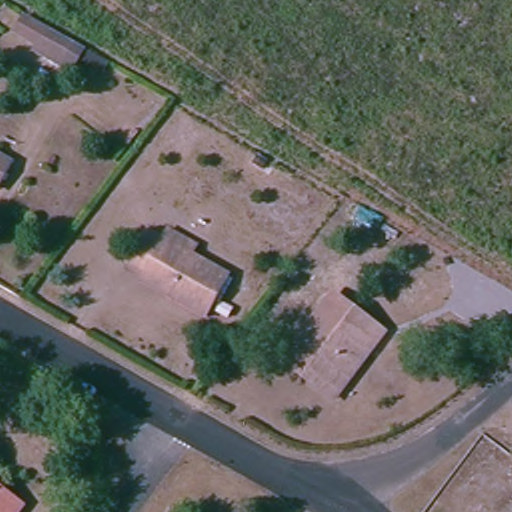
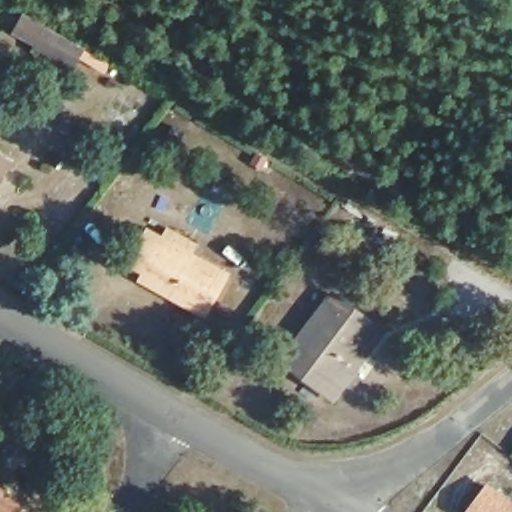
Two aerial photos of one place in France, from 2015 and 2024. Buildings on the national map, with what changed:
unchanged [(75,41),(62,66),(41,54),(45,50),(22,36),(33,18),(75,41)]
unchanged [(16,159),(0,192),(0,150),(16,159)]
unchanged [(147,274),(132,266),(150,232),(165,239),(169,230),(201,247),(195,257),(236,280),(212,321),(172,301),(142,283),(147,274)]
unchanged [(336,386),(295,356),(337,297),(389,334),(377,349),(366,342),(336,386)]
unchanged [(339,400),(288,363),(295,356),(336,386),(366,342),(377,349),(339,400)]
new [(512,497),(512,512),(464,512),(488,481),(512,497)]
unchanged [(18,512),(0,512),(0,492),(11,501),(20,509),(18,512)]

